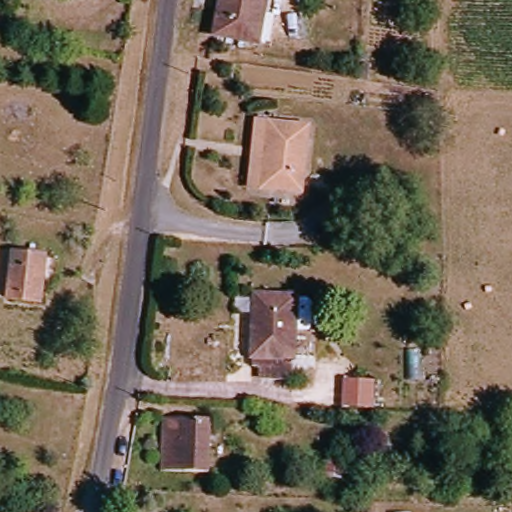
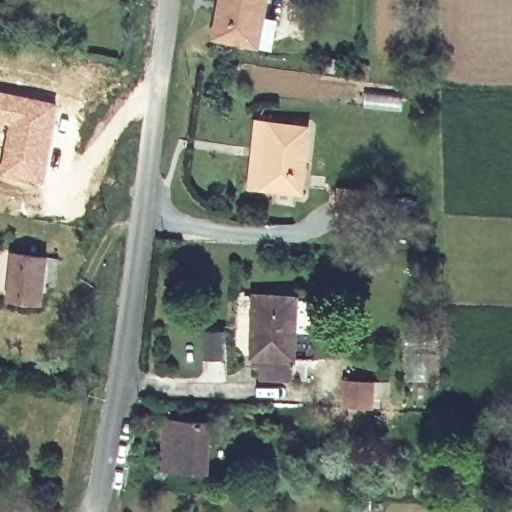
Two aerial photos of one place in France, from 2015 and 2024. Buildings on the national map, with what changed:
unchanged [(269,17),(263,41),(228,35),(234,0),(281,0),(278,18),(269,17)]
new [(59,101),(43,184),(0,174),(0,166),(7,131),(0,129),(0,90),(59,101)]
unchanged [(313,189),(274,184),(258,183),(270,118),(284,119),(325,123),(313,189)]
unchanged [(346,229),(347,218),(350,201),(351,186),(382,188),(381,192),(390,192),(389,203),(388,219),(368,219),(367,230),(346,229)]
unchanged [(56,254),(50,303),(15,297),(24,249),(56,254)]
unchanged [(271,378),(272,360),(262,360),(264,294),(308,294),(306,362),(301,361),(301,379),(271,378)]
unchanged [(342,408),(343,378),(379,380),(376,410),(342,408)]
unchanged [(174,415),(220,417),(219,467),(172,465),(174,415)]

